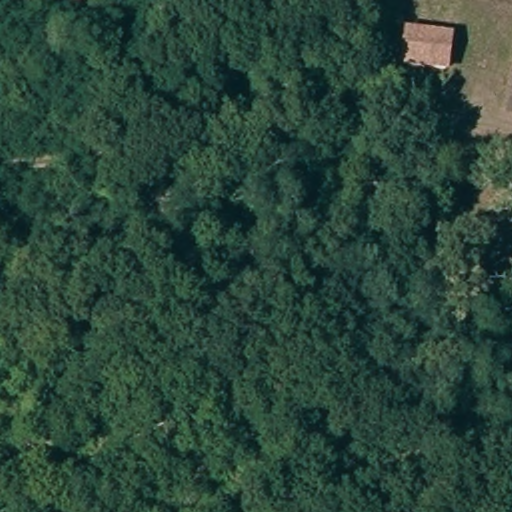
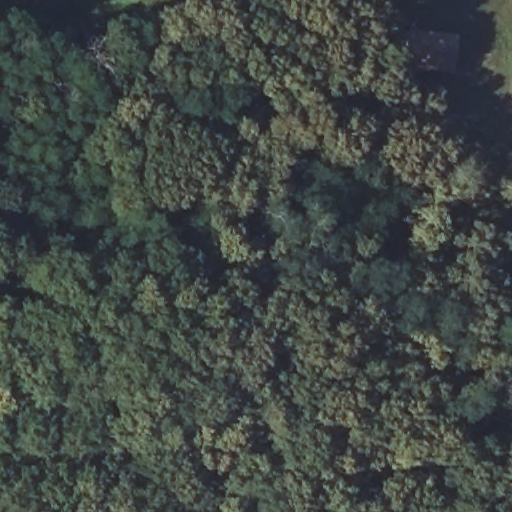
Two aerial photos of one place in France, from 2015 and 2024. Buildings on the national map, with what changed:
unchanged [(450,37),(448,71),(402,69),(405,32),(450,37)]

